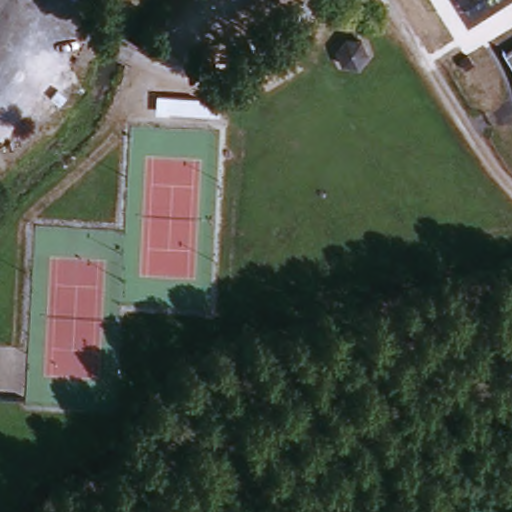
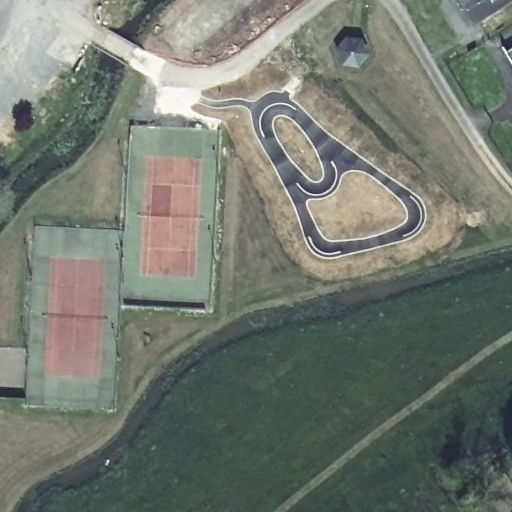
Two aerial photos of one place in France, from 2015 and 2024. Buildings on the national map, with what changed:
unchanged [(355,35),(368,53),(357,66),(343,65),(333,50),(345,35),(355,35)]
unchanged [(512,48),(512,64),(505,53),(512,48)]

